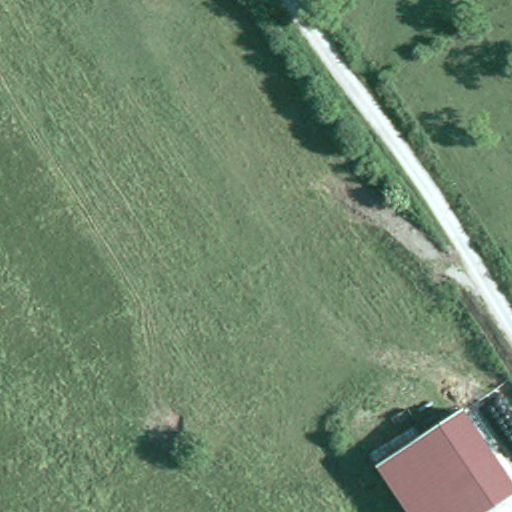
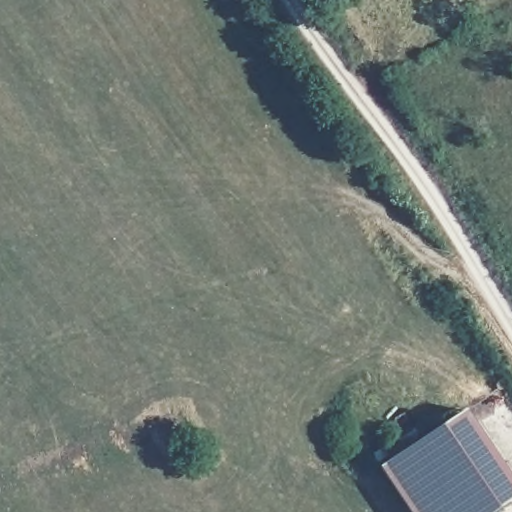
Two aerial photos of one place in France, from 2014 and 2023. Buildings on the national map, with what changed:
unchanged [(512,481),(512,494),(496,504),(440,420),(461,405),(512,481)]
unchanged [(440,420),(496,504),(485,512),(410,512),(377,461),(428,428),(440,420)]

